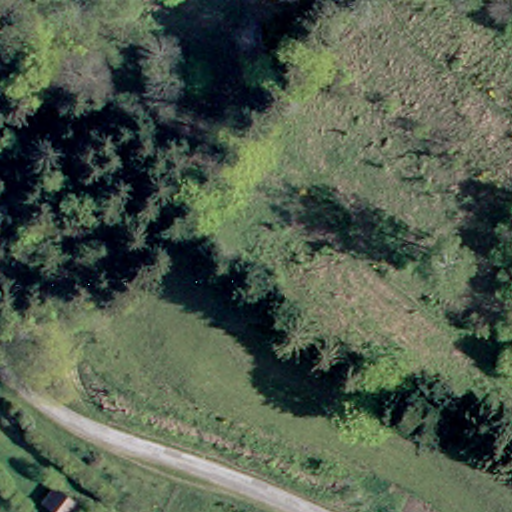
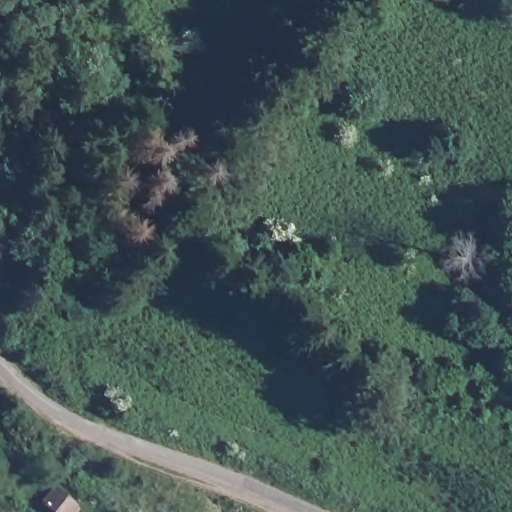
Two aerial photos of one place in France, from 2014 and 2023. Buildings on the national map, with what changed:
unchanged [(67,512),(61,512),(44,497),(55,483),(77,500),(67,512)]

